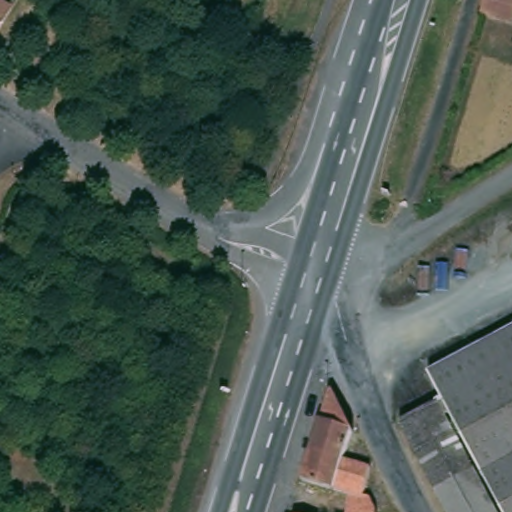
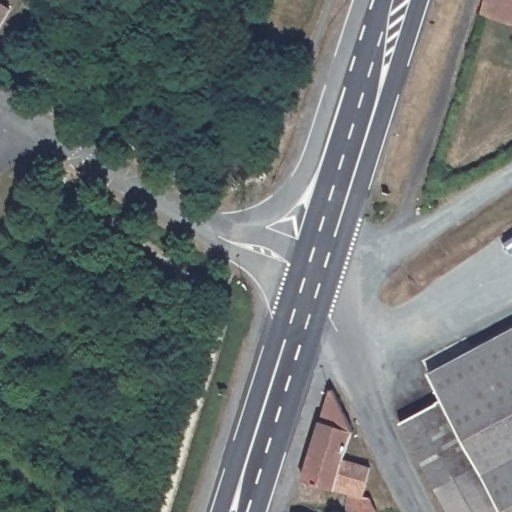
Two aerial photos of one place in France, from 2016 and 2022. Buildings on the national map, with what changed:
unchanged [(0,26),(0,0),(1,0),(11,5),(0,26)]
unchanged [(484,10),(488,0),(512,0),(512,19),(484,10)]
unchanged [(423,373),(512,326),(512,512),(447,512),(398,418),(436,398),(423,373)]
unchanged [(332,384),(338,384),(355,425),(353,430),(334,485),(303,472),(332,384)]
unchanged [(360,437),(382,475),(377,505),(376,511),(344,510),(346,490),(334,485),(353,430),(360,437)]
unchanged [(383,512),(383,511),(399,510),(400,512),(383,512)]

